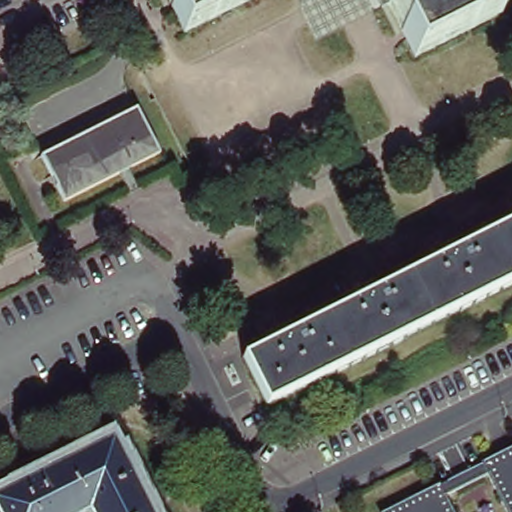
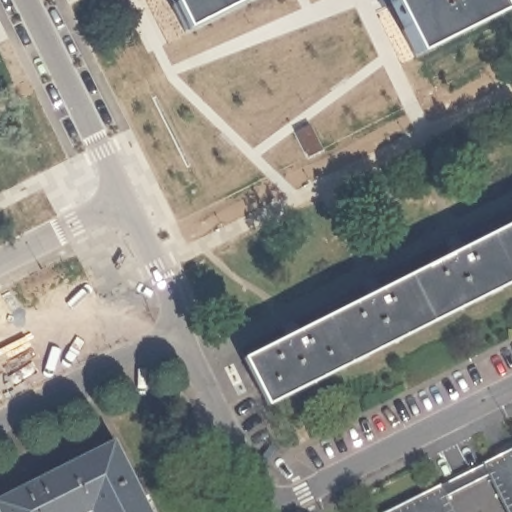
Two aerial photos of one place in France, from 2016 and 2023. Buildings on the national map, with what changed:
unchanged [(185,32),(169,0),(249,0),(185,32)]
unchanged [(378,0),(494,0),(501,15),(415,57),(388,4),(382,8),(378,0)]
demolished [(64,203),(42,158),(137,109),(160,154),(64,203)]
unchanged [(271,402),(248,354),(512,222),(512,281),(271,402)]
unchanged [(150,512),(0,512),(0,495),(112,439),(150,512)]
unchanged [(506,512),(487,476),(442,499),(449,512),(391,512),(512,450),(512,512),(506,512)]

